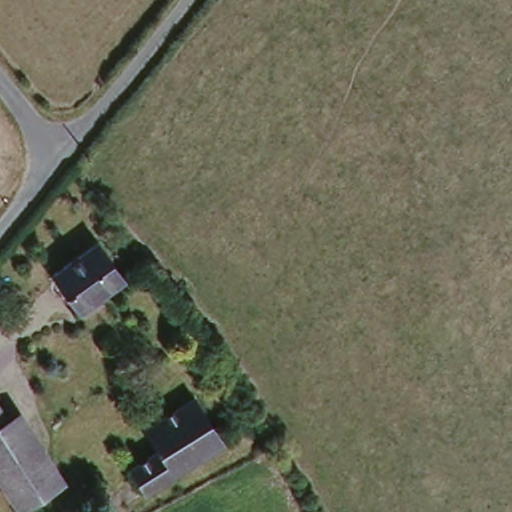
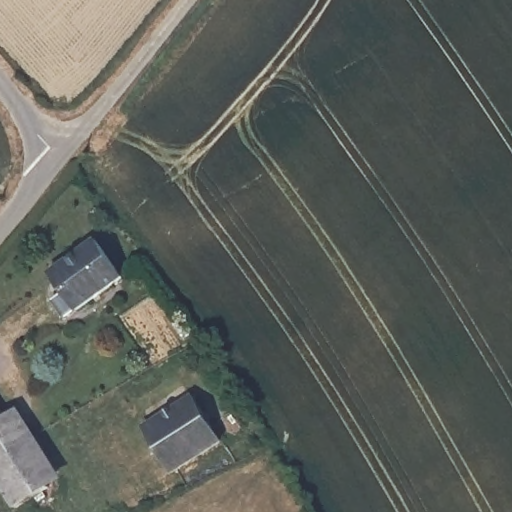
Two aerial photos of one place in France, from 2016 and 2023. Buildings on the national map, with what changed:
unchanged [(104,243),(128,279),(81,309),(58,274),(104,243)]
unchanged [(157,445),(146,425),(194,396),(223,438),(144,487),(129,465),(157,445)]
unchanged [(18,503),(0,475),(0,406),(49,484),(18,503)]

